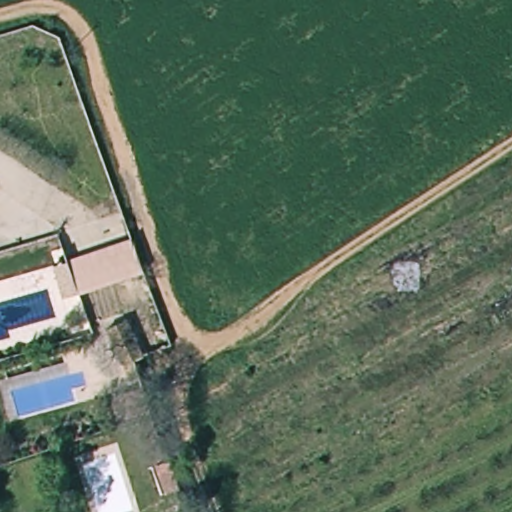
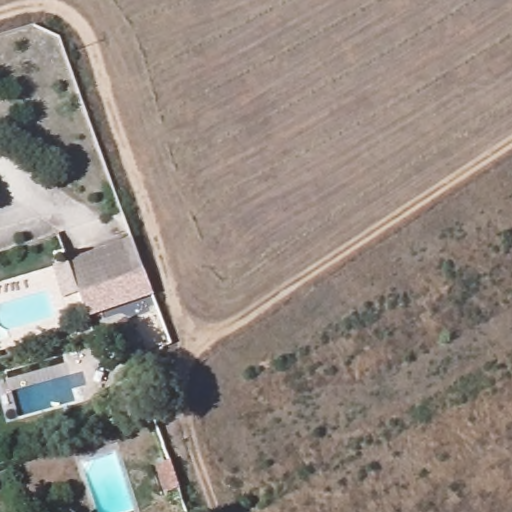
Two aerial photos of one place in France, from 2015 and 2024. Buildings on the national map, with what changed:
unchanged [(70,257),(124,237),(136,271),(82,290),(70,257)]
unchanged [(116,362),(102,325),(128,316),(139,353),(133,357),(143,387),(126,392),(116,362)]

